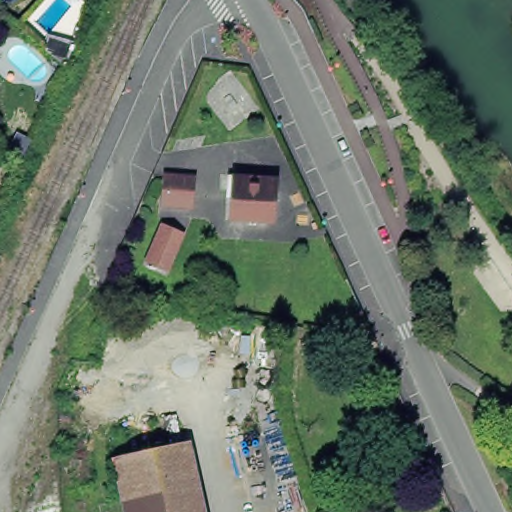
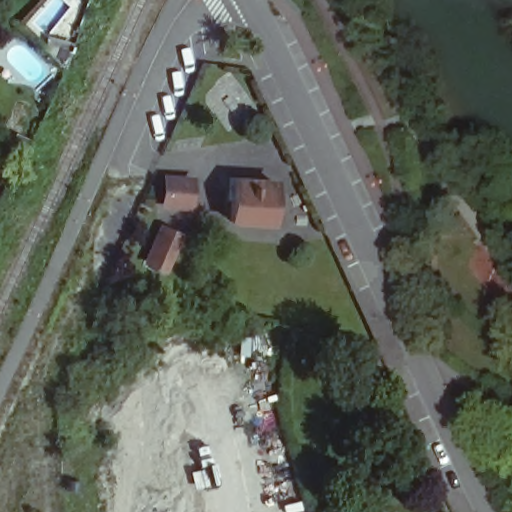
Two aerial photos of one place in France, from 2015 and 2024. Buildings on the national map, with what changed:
unchanged [(63,65),(44,48),(47,41),(69,47),(63,65)]
demolished [(229,134),(202,98),(188,78),(219,54),(227,65),(262,108),(229,134)]
unchanged [(0,170),(2,170),(0,175),(0,170)]
unchanged [(239,179),(267,181),(267,179),(280,180),(277,220),(237,217),(239,179)]
unchanged [(162,183),(198,184),(196,218),(160,216),(162,183)]
unchanged [(162,226),(185,236),(169,276),(147,265),(162,226)]
demolished [(194,441),(208,512),(121,512),(111,460),(194,441)]

